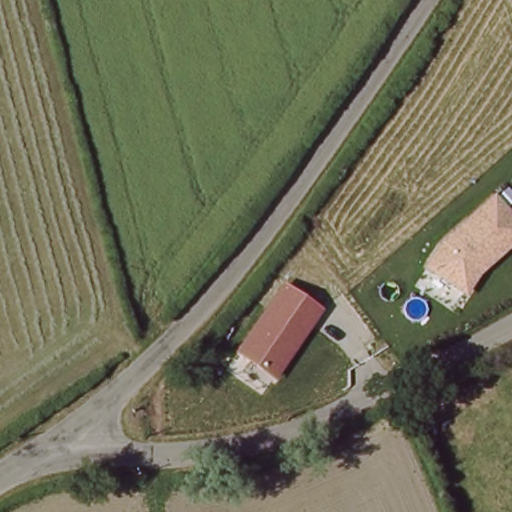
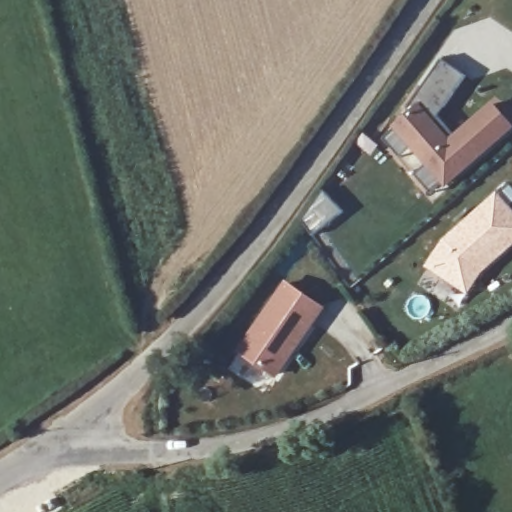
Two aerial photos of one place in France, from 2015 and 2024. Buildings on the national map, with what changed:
new [(512,127),(512,130),(445,188),(393,126),(408,113),(405,109),(440,59),(465,76),(437,117),(454,134),(492,101),(512,127)]
unchanged [(427,268),(446,239),(497,195),(512,211),(512,246),(485,270),(469,297),(427,268)]
unchanged [(238,352),(285,280),(325,308),(279,378),(238,352)]

